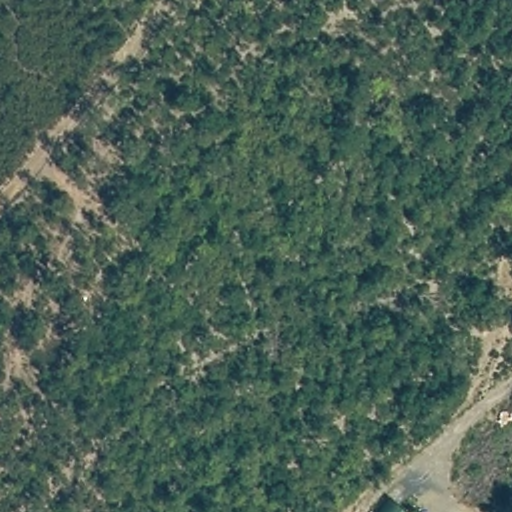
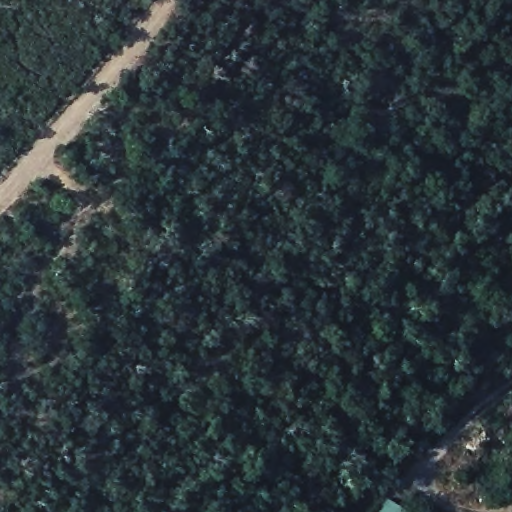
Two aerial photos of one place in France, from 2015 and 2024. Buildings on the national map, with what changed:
unchanged [(388,498),(406,512),(379,512),(388,498)]

